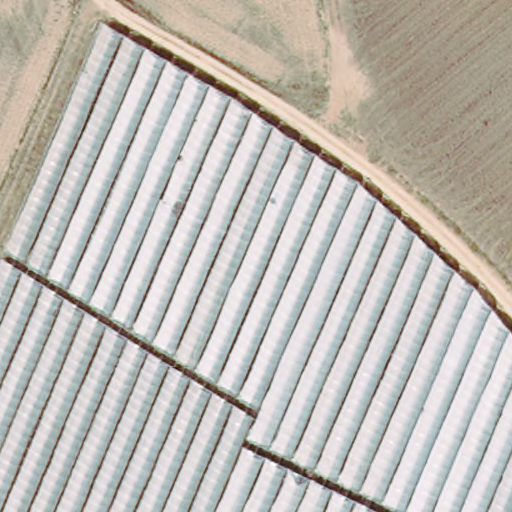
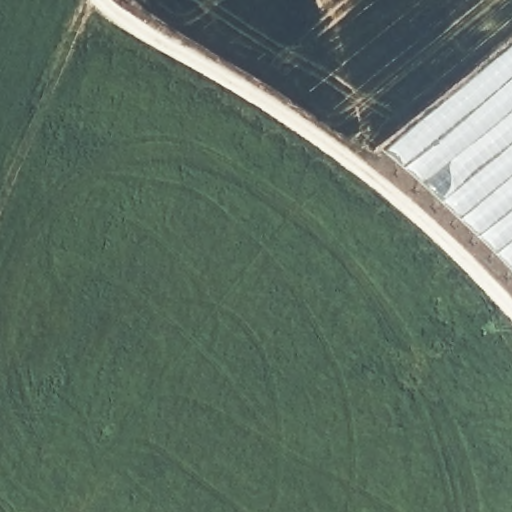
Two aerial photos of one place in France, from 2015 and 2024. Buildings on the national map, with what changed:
demolished [(360,137),(350,21),(347,0),(512,0),(512,276),(482,243),(360,137)]
demolished [(2,260),(101,24),(353,180),(253,413),(211,512),(0,512),(0,263),(2,260)]
demolished [(0,169),(0,125),(16,132),(0,169)]

